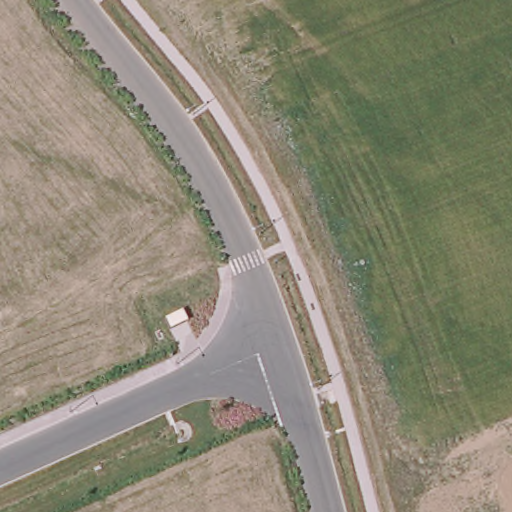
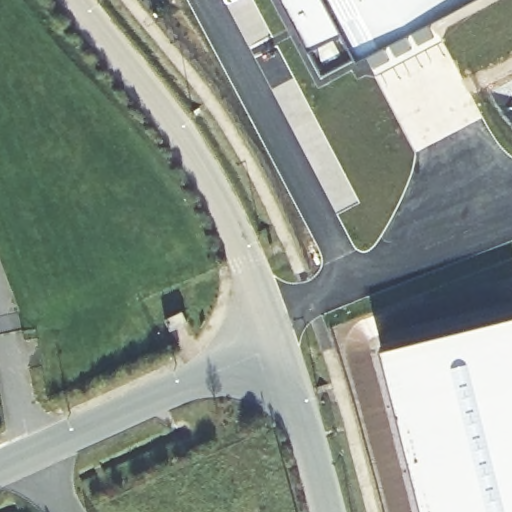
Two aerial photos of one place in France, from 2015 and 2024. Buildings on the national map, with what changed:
new [(466,0),(358,57),(321,74),(283,0),(466,0)]
unchanged [(183,310),(188,320),(169,329),(165,319),(183,310)]
new [(381,349),(512,314),(512,512),(422,512),(381,349)]

